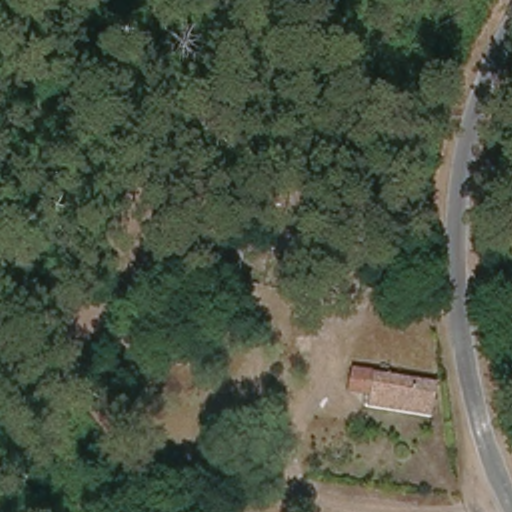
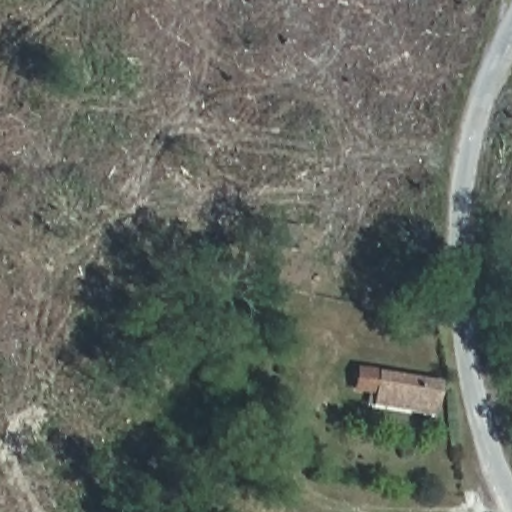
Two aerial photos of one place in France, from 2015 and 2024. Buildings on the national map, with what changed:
unchanged [(439,378),(432,416),(369,404),(370,392),(348,390),(353,363),(439,378)]

